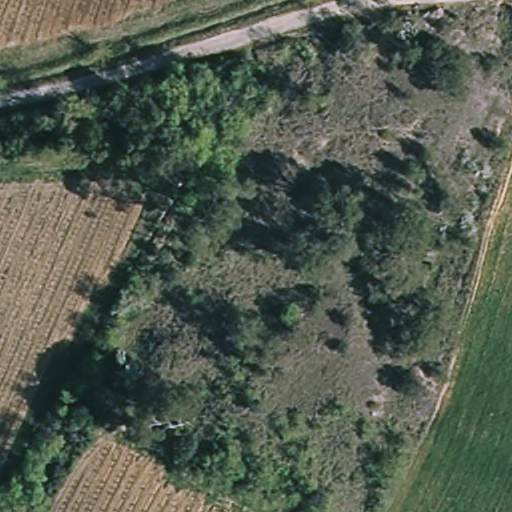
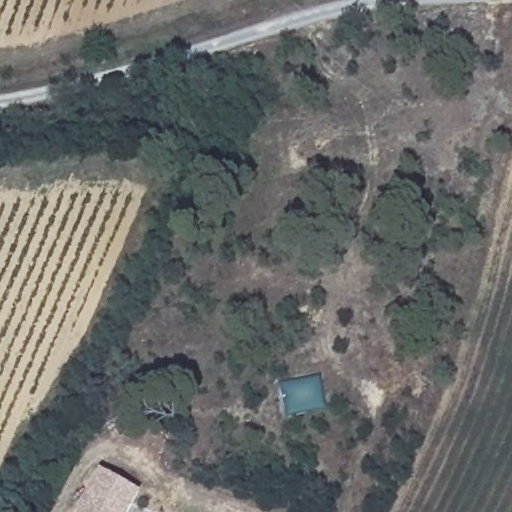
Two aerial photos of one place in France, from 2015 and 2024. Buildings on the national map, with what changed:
new [(144,494),(134,512),(86,512),(106,474),(144,494)]

